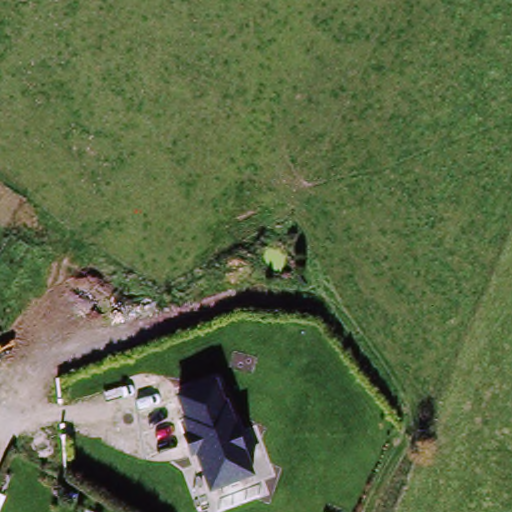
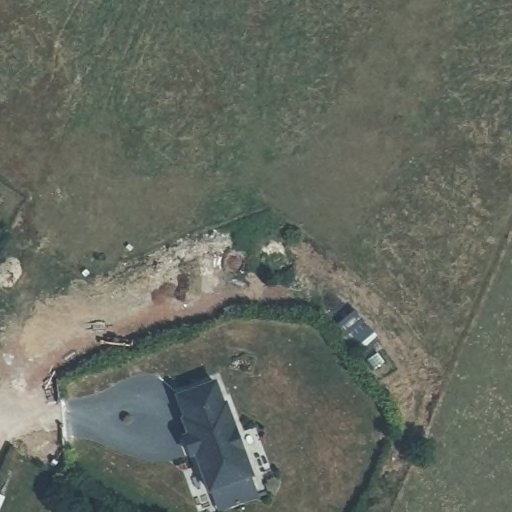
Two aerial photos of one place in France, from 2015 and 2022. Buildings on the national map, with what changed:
unchanged [(258,473),(215,490),(182,396),(227,380),(258,473)]

